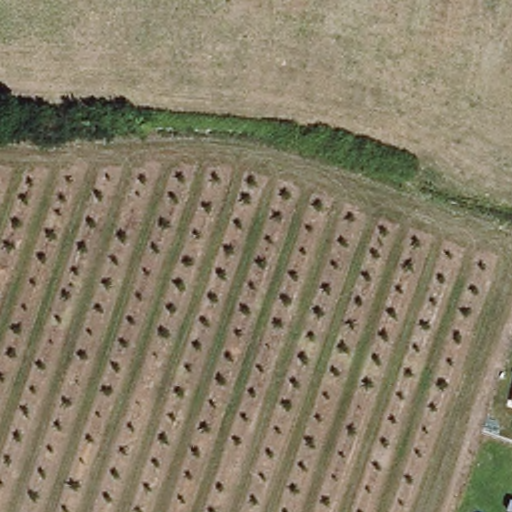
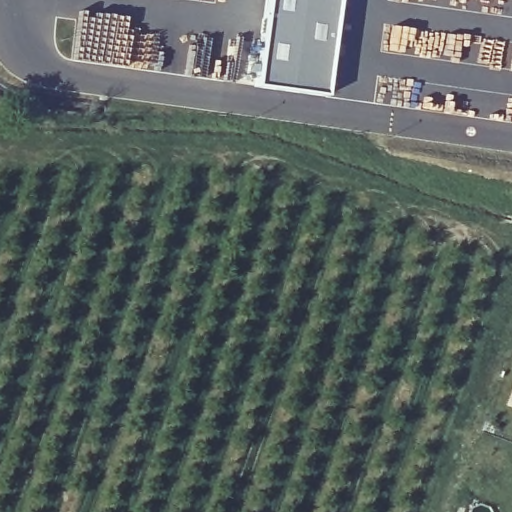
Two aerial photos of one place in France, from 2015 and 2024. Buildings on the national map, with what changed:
new [(334,0),(322,87),(253,77),(264,0),(334,0)]
unchanged [(512,399),(512,401),(511,400),(512,399)]

